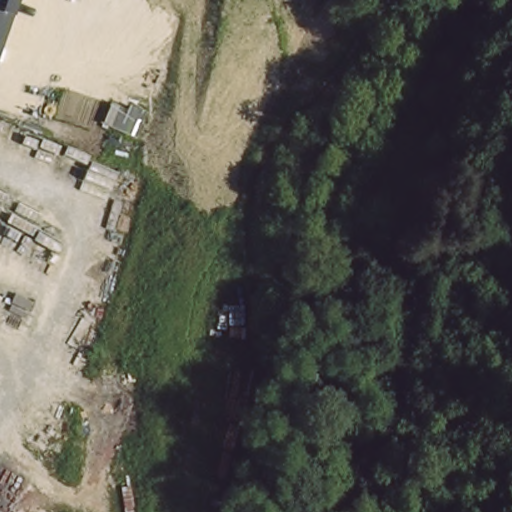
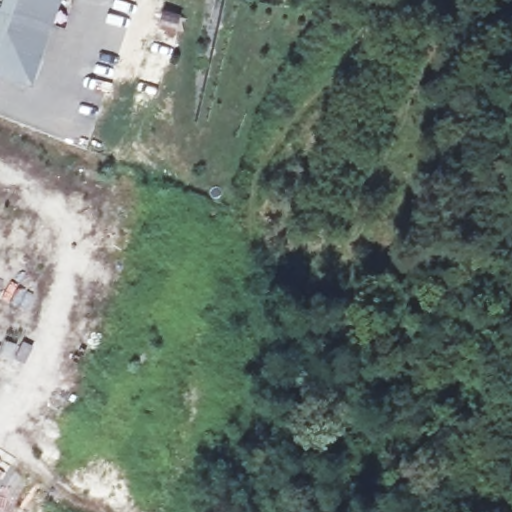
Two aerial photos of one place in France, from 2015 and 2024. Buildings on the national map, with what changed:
unchanged [(0,49),(0,0),(15,0),(0,49)]
new [(32,85),(0,74),(0,49),(15,0),(60,0),(32,85)]

